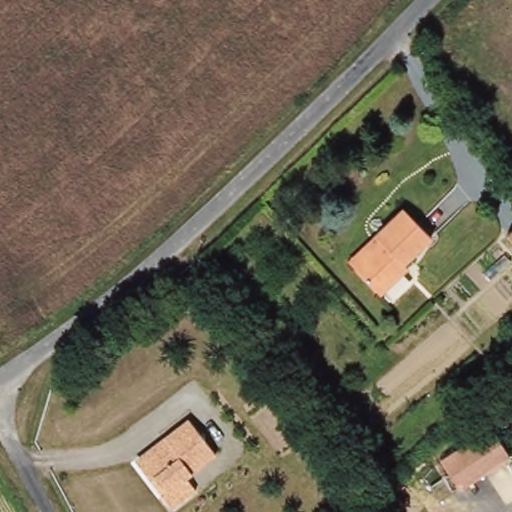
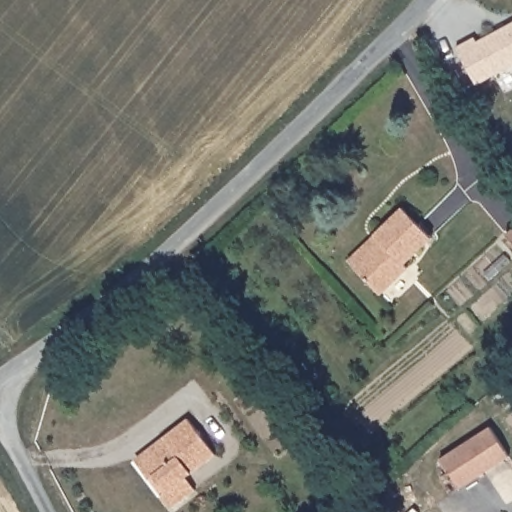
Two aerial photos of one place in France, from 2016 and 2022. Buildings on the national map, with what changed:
new [(510,24),(512,23),(512,66),(476,85),(456,48),(474,38),(477,42),(510,24)]
unchanged [(414,270),(386,295),(358,265),(352,260),(375,239),(408,210),(436,239),(409,264),(414,270)]
unchanged [(512,235),(512,248),(505,240),(512,235)]
unchanged [(139,463),(168,442),(166,439),(191,419),(218,456),(188,478),(197,491),(173,509),(163,495),(152,480),(139,463)]
unchanged [(512,459),(464,491),(445,463),(494,429),(512,455),(512,459)]

